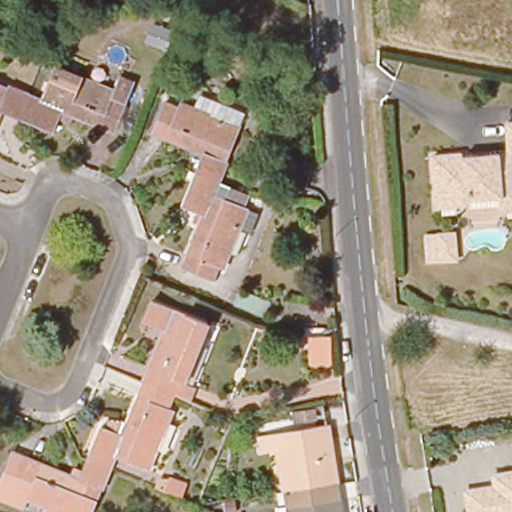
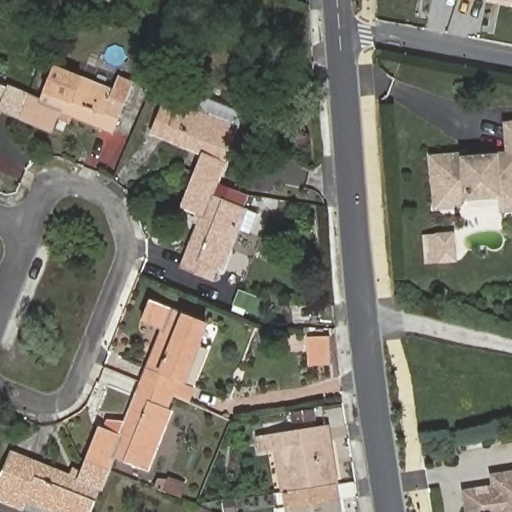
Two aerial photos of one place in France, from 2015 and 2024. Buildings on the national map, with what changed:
new [(486,1),(487,0),(512,0),(512,7),(486,1)]
unchanged [(115,74),(130,80),(107,134),(55,112),(47,132),(15,119),(24,98),(24,96),(25,93),(36,97),(50,65),(109,89),(115,74)]
unchanged [(15,119),(0,113),(0,86),(24,96),(24,98),(15,119)]
unchanged [(201,154),(151,134),(165,100),(192,110),(199,95),(245,113),(218,181),(204,175),(195,172),(201,154)]
unchanged [(511,207),(505,203),(480,205),(470,216),(445,218),(441,166),(468,164),(471,167),(512,164),(512,221),(511,207)]
unchanged [(240,205),(249,209),(225,270),(218,267),(213,280),(180,267),(200,214),(181,206),(195,172),(204,175),(218,181),(224,183),(246,192),(240,205)]
unchanged [(453,234),(455,260),(440,261),(437,235),(453,234)]
unchanged [(185,389),(180,387),(175,401),(140,386),(161,333),(142,326),(150,304),(210,328),(185,389)]
unchanged [(328,337),(328,362),(308,362),(308,337),(328,337)]
unchanged [(140,386),(175,401),(170,414),(174,415),(150,476),(115,462),(110,474),(96,469),(85,465),(100,431),(119,438),(140,386)]
unchanged [(312,409),(314,419),(296,422),(295,412),(312,409)]
unchanged [(285,493),(278,450),(260,452),(257,435),(326,425),(336,484),(285,493)]
unchanged [(96,469),(110,474),(95,512),(39,512),(26,507),(25,512),(13,512),(0,507),(0,482),(4,473),(17,479),(25,460),(79,482),(85,465),(96,469)]
unchanged [(496,492),(495,482),(512,480),(512,512),(468,512),(466,497),(496,492)]
unchanged [(174,482),(195,490),(190,503),(169,495),(174,482)]
unchanged [(336,484),(341,512),(287,512),(285,493),(336,484)]

